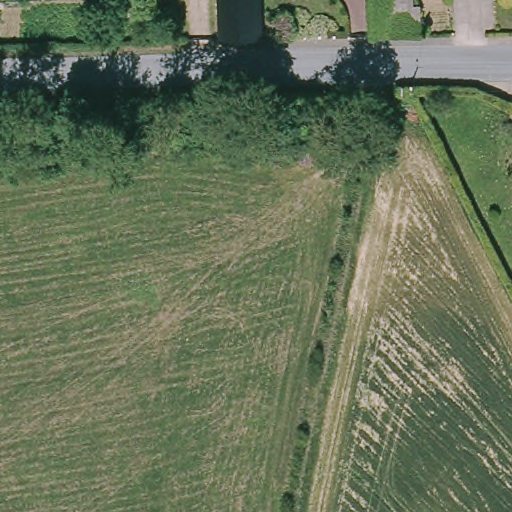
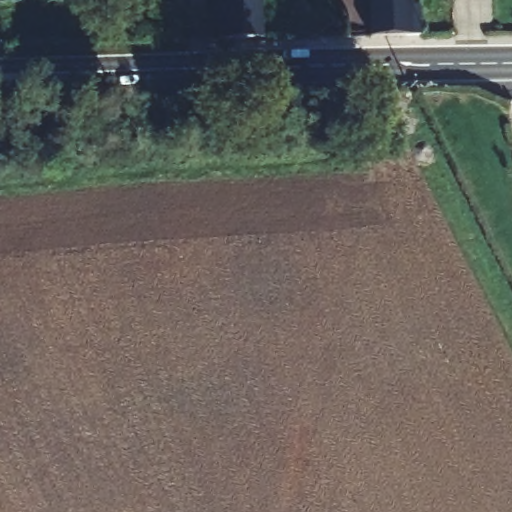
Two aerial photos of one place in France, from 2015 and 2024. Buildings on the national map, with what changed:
unchanged [(220,0),(261,0),(261,40),(221,42),(220,0)]
unchanged [(418,42),(373,43),(372,0),(407,0),(407,10),(417,11),(418,42)]

